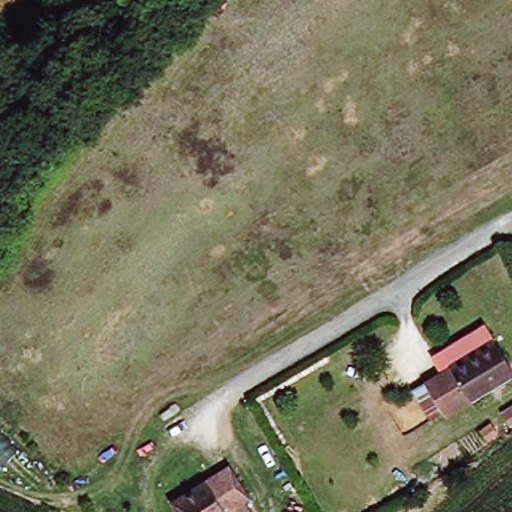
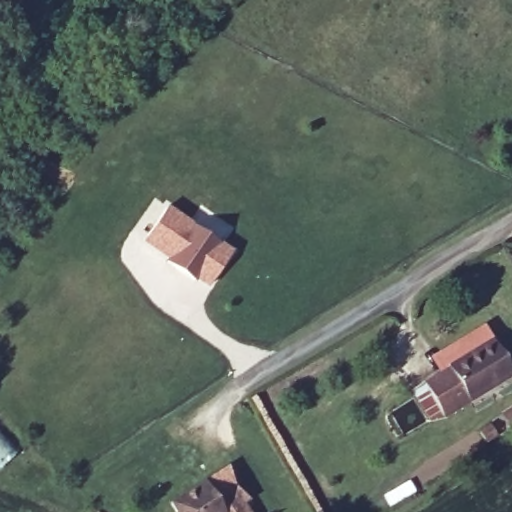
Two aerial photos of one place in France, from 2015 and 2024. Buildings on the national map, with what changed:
new [(209,284),(197,276),(194,280),(174,267),(177,262),(144,238),(166,208),(229,253),(209,284)]
unchanged [(442,417),(421,385),(490,341),(510,373),(442,417)]
unchanged [(229,466),(246,494),(240,497),(250,512),(175,512),(169,502),(229,466)]

